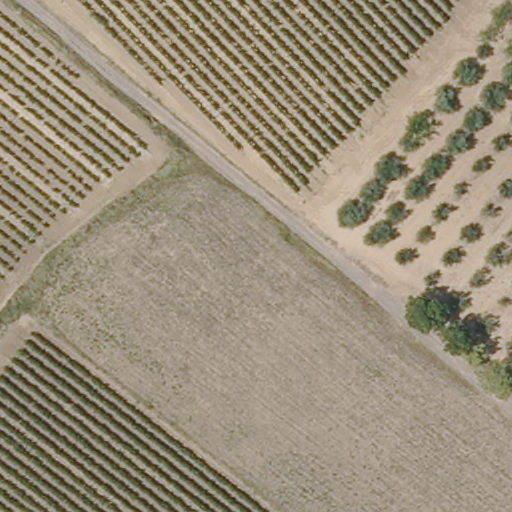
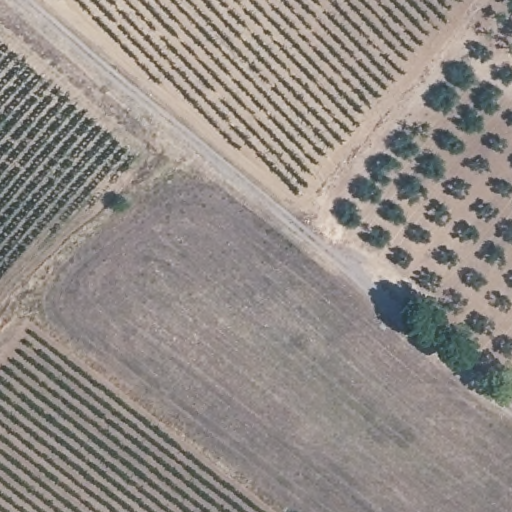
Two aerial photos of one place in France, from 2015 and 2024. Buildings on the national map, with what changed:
[]

